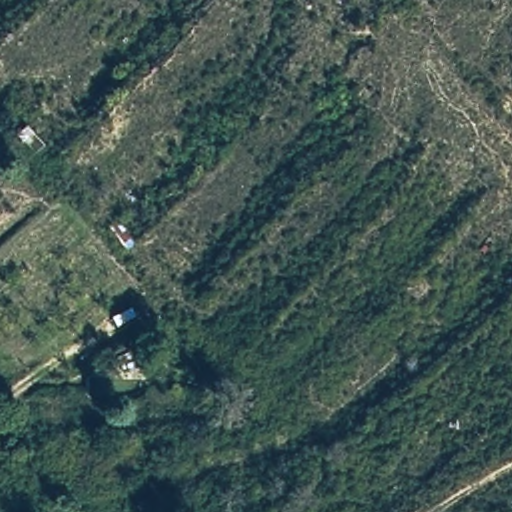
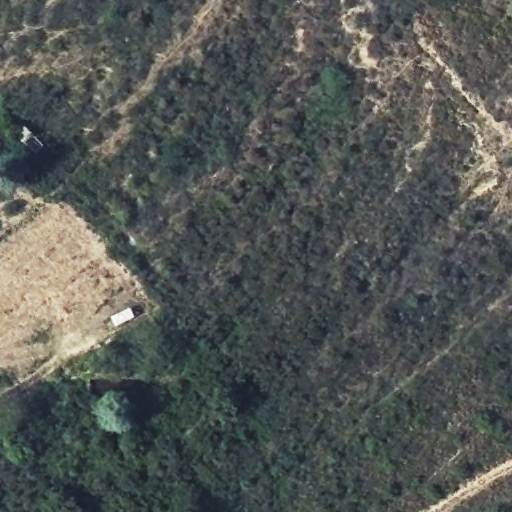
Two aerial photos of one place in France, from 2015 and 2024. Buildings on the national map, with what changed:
unchanged [(43,144),(31,154),(11,133),(23,124),(43,144)]

